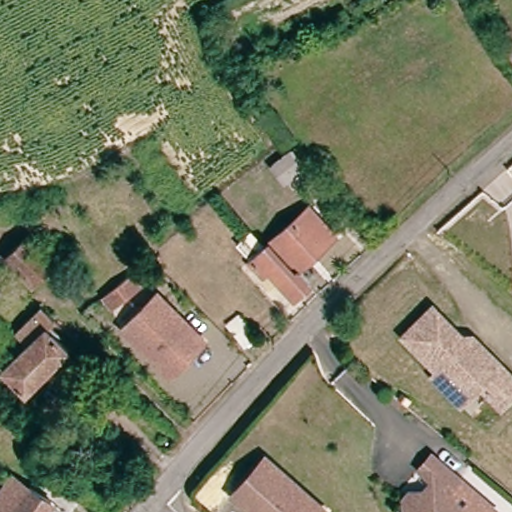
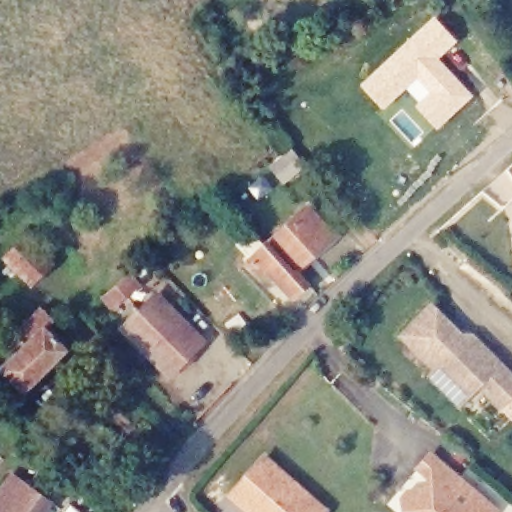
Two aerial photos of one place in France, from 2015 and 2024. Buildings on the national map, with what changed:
new [(435,14),(458,40),(441,58),(475,94),(437,129),(406,89),(384,109),(360,83),(435,14)]
unchanged [(287,148),(302,164),(283,182),(269,165),(287,148)]
unchanged [(301,269),(314,285),(299,298),(273,269),(268,274),(255,259),(312,207),(339,235),(301,269)]
unchanged [(67,278),(46,298),(0,252),(0,243),(16,226),(67,278)]
unchanged [(112,305),(104,295),(106,293),(130,273),(139,283),(112,305)]
unchanged [(156,299),(205,346),(170,379),(123,333),(156,299)]
unchanged [(45,327),(67,349),(25,391),(2,368),(29,344),(16,332),(40,309),(51,321),(45,327)]
unchanged [(431,310),(461,340),(472,340),(512,380),(512,400),(501,411),(480,390),(471,399),(460,409),(431,381),(436,376),(401,341),(431,310)]
unchanged [(257,337),(244,347),(225,323),(240,314),(257,337)]
unchanged [(405,496),(410,492),(423,491),(433,481),(420,469),(433,455),(461,481),(482,500),(495,512),(406,512),(406,510),(405,496)]
unchanged [(239,494),(271,457),(333,509),(330,512),(258,512),(239,494)]
unchanged [(14,481),(16,476),(55,502),(49,512),(0,512),(0,473),(14,481)]

